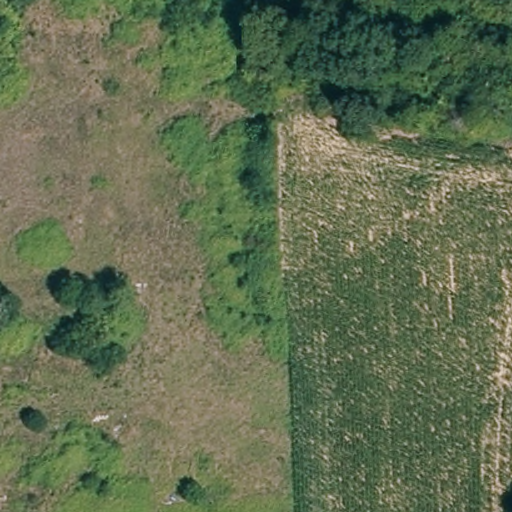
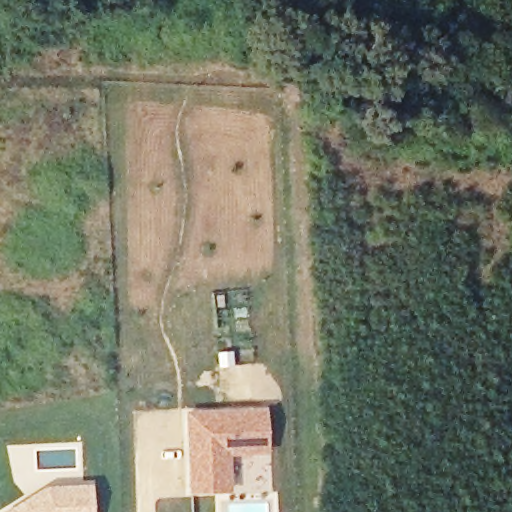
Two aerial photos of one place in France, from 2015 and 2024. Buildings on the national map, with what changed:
new [(188,494),(184,412),(265,408),(268,454),(230,457),(231,491),(188,494)]
new [(93,482),(92,512),(0,512),(0,510),(47,483),(93,482)]

